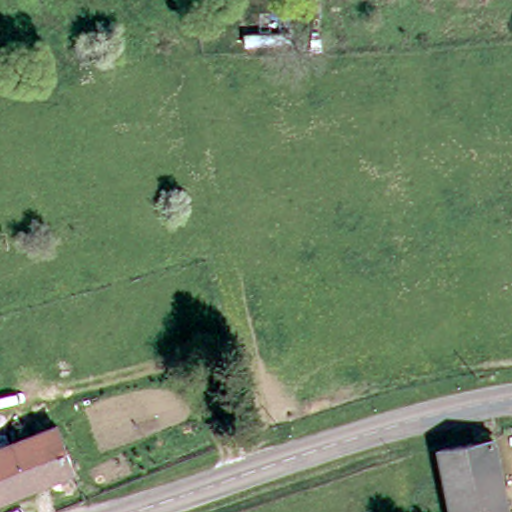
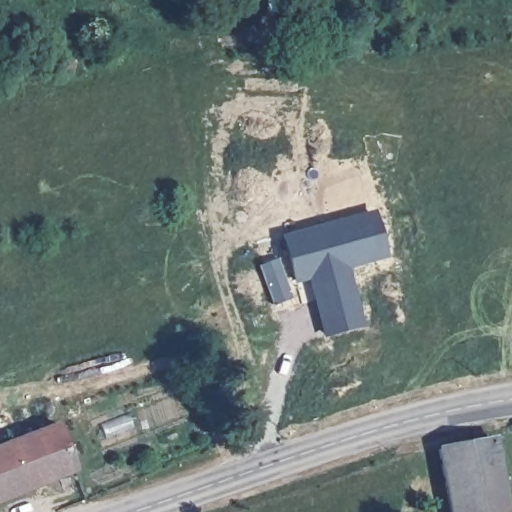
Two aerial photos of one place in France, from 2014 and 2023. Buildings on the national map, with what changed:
new [(383,257),(344,268),(360,326),(326,335),(310,277),(295,281),(288,258),(283,240),(318,231),(372,215),(383,257)]
unchanged [(0,445),(59,420),(79,468),(0,501),(0,445)]
unchanged [(493,437),(506,512),(451,512),(439,447),(493,437)]

